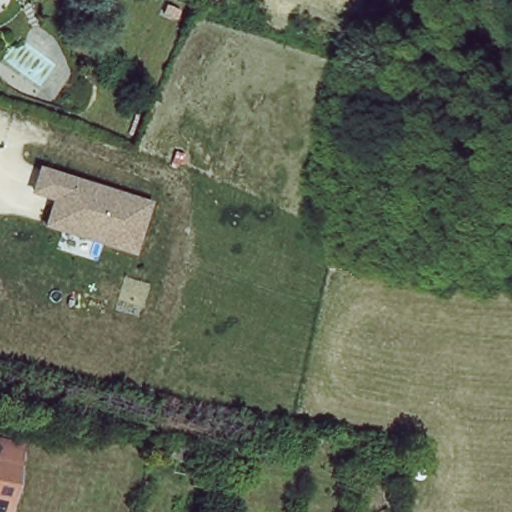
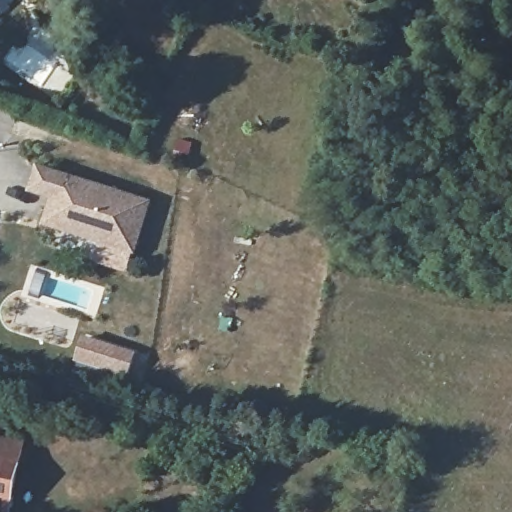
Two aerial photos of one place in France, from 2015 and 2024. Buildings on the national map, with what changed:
unchanged [(152,201),(135,256),(42,227),(50,200),(29,192),(38,165),(152,201)]
new [(83,336),(136,352),(128,377),(76,362),(83,336)]
unchanged [(4,501),(2,511),(0,511),(0,441),(17,445),(4,501)]

